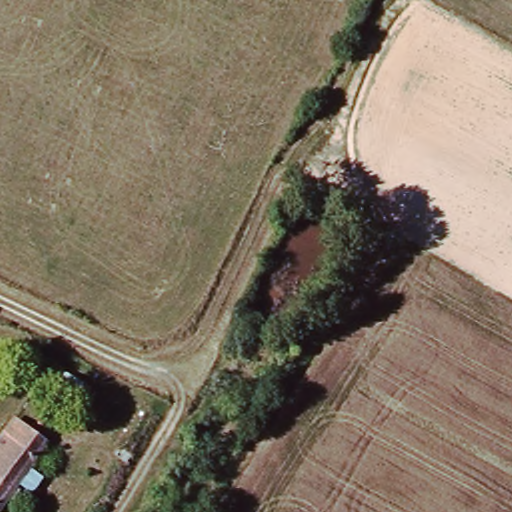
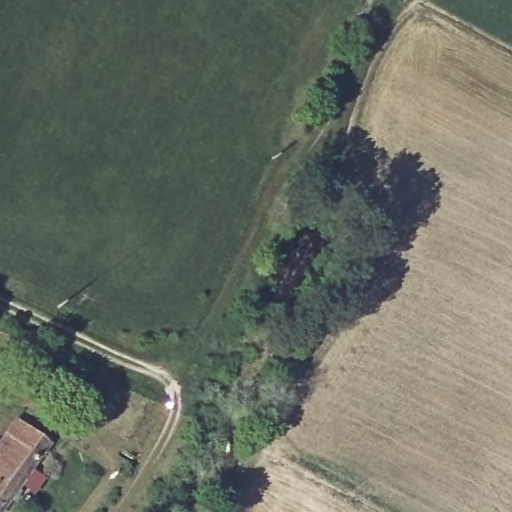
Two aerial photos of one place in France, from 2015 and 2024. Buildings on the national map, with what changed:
unchanged [(17,425),(50,446),(41,458),(4,512),(0,512),(0,450),(10,436),(17,425)]

